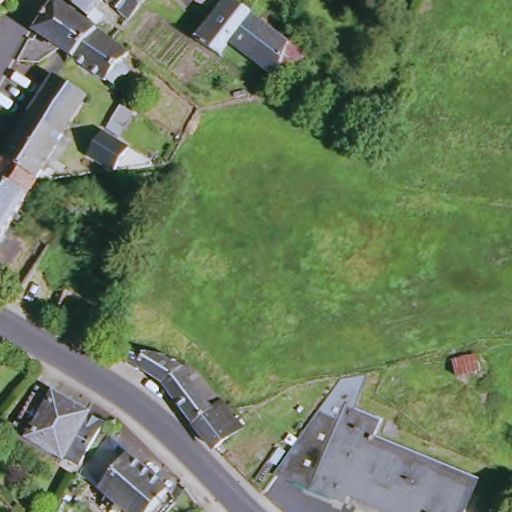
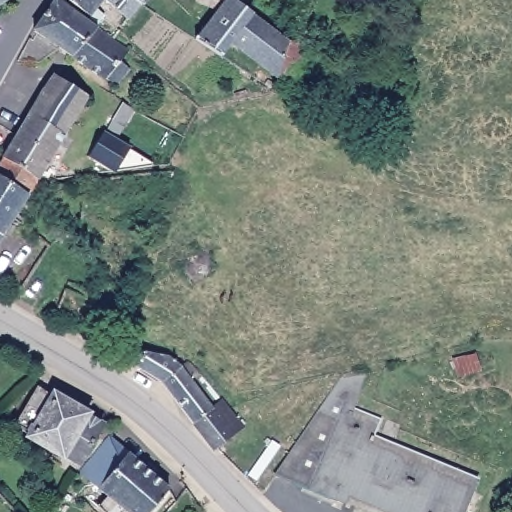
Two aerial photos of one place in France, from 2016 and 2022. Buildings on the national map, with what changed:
unchanged [(22,0),(0,14),(0,0),(22,0)]
unchanged [(63,50),(38,30),(57,0),(61,0),(99,29),(76,60),(63,50)]
unchanged [(133,21),(108,1),(98,14),(103,18),(99,24),(93,20),(94,17),(69,0),(138,0),(144,5),(133,21)]
unchanged [(144,5),(138,0),(172,0),(163,17),(144,5)]
unchanged [(243,26),(223,53),(201,36),(216,17),(198,2),(199,0),(227,0),(220,10),(243,26)]
unchanged [(281,76),(254,56),(246,68),(223,53),(243,26),(220,10),(227,0),(238,0),(293,41),(310,51),(298,84),(281,76)]
unchanged [(132,52),(123,65),(131,71),(118,89),(111,83),(109,85),(101,78),(76,60),(99,29),(132,52)]
unchanged [(72,134),(40,114),(63,76),(95,96),(72,134)]
unchanged [(126,130),(114,124),(126,105),(138,111),(126,130)]
unchanged [(58,156),(25,135),(40,114),(72,134),(58,156)]
unchanged [(45,179),(11,156),(25,135),(58,156),(45,179)]
unchanged [(118,178),(93,160),(108,139),(158,175),(118,178)]
unchanged [(0,249),(0,171),(1,172),(11,156),(45,179),(43,180),(0,249)]
unchanged [(1,258),(0,261),(0,258),(1,258)]
unchanged [(129,362),(116,355),(133,356),(174,363),(182,369),(184,367),(194,371),(206,378),(239,420),(213,435),(210,438),(170,387),(129,362)]
unchanged [(374,379),(361,413),(389,425),(383,441),(487,481),(474,512),(386,512),(354,500),(350,507),(271,476),(351,383),(374,379)]
unchanged [(88,468),(23,430),(45,392),(110,429),(88,468)]
unchanged [(178,494),(162,512),(129,512),(88,476),(118,442),(178,494)]

